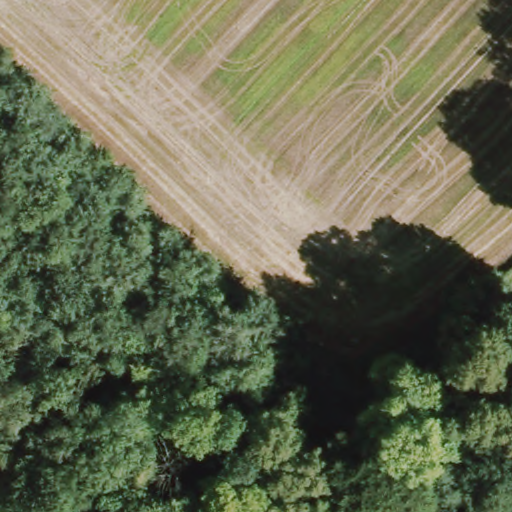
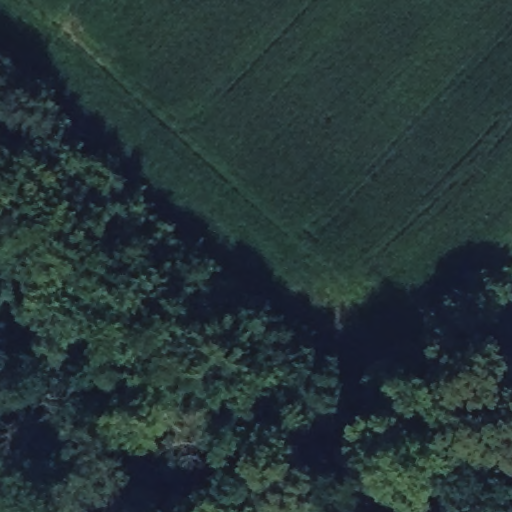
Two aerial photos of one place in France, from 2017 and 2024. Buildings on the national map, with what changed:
[]

